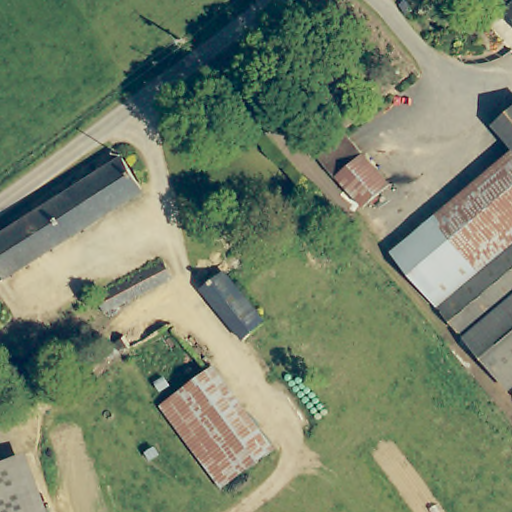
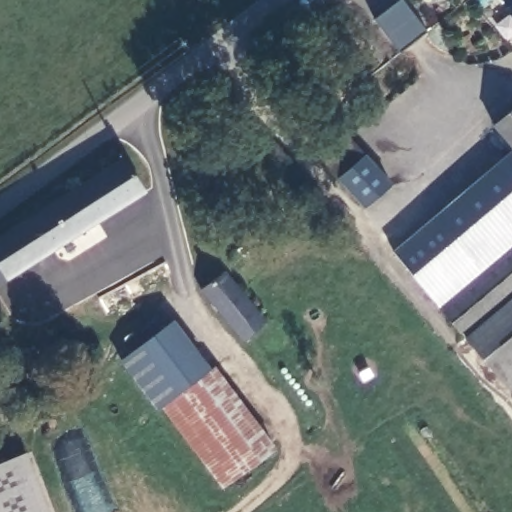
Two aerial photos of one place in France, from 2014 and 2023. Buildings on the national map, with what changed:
new [(404,0),(426,32),(397,52),(373,17),(397,0),(404,0)]
unchanged [(512,0),(512,4),(509,0),(512,0)]
unchanged [(512,123),(512,135),(506,128),(512,123)]
unchanged [(321,154),(347,131),(368,155),(341,177),(321,154)]
unchanged [(0,273),(0,238),(71,186),(134,149),(156,184),(22,275),(8,285),(0,273)]
unchanged [(368,155),(392,180),(365,204),(341,177),(368,155)]
unchanged [(505,293),(466,329),(409,262),(512,177),(512,229),(477,257),(505,293)]
unchanged [(466,329),(505,293),(477,257),(512,229),(512,312),(476,341),(466,329)]
demolished [(162,260),(171,277),(108,312),(99,293),(162,260)]
unchanged [(272,317),(251,335),(222,303),(208,286),(230,267),(272,317)]
demolished [(152,305),(166,327),(132,352),(129,349),(119,356),(112,347),(118,342),(114,335),(152,305)]
unchanged [(512,312),(512,384),(476,341),(512,312)]
new [(158,410),(121,360),(173,319),(209,369),(206,371),(166,405),(158,410)]
unchanged [(275,447),(227,486),(166,405),(206,371),(214,365),(275,447)]
unchanged [(47,512),(0,512),(0,498),(16,492),(4,460),(25,451),(47,512)]
unchanged [(16,492),(0,498),(0,461),(4,460),(16,492)]

